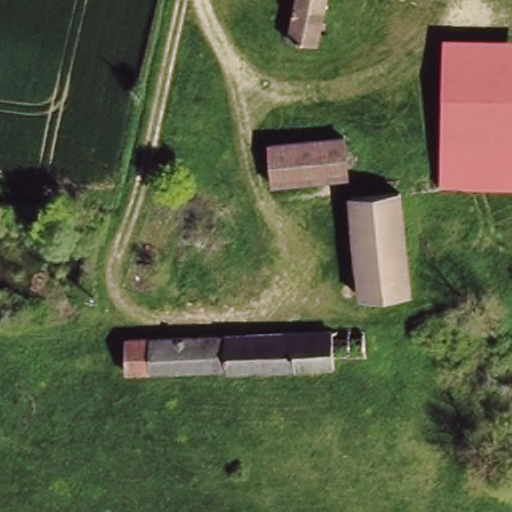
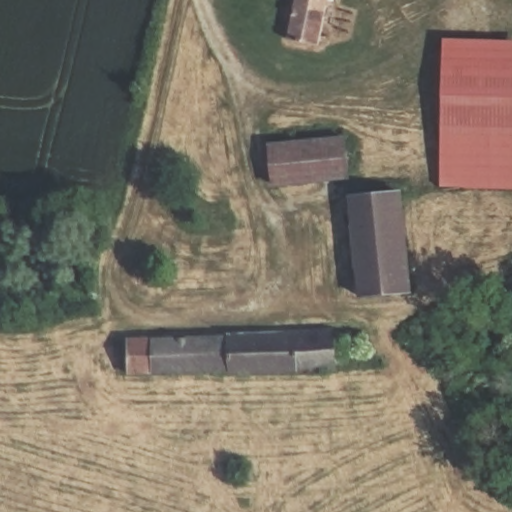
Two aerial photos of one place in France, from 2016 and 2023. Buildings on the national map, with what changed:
unchanged [(322,40),(287,35),(295,0),(330,0),(322,40)]
unchanged [(450,39),(512,37),(512,185),(469,184),(450,183),(450,39)]
unchanged [(344,139),(347,178),(270,176),(271,170),(272,140),(317,139),(344,139)]
unchanged [(352,190),(401,189),(409,292),(359,297),(352,190)]
unchanged [(365,324),(368,363),(127,376),(124,333),(365,324)]

